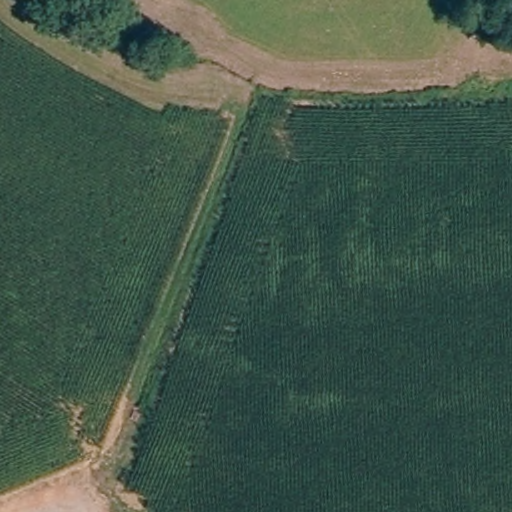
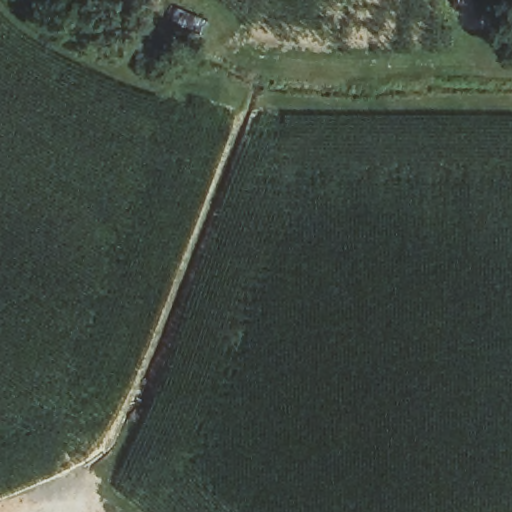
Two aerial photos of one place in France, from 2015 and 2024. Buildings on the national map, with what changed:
[]

